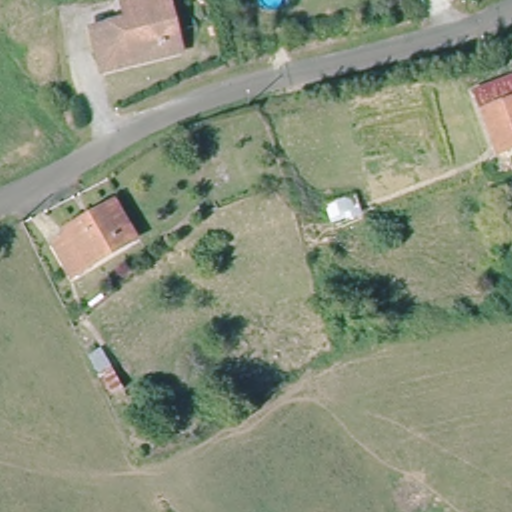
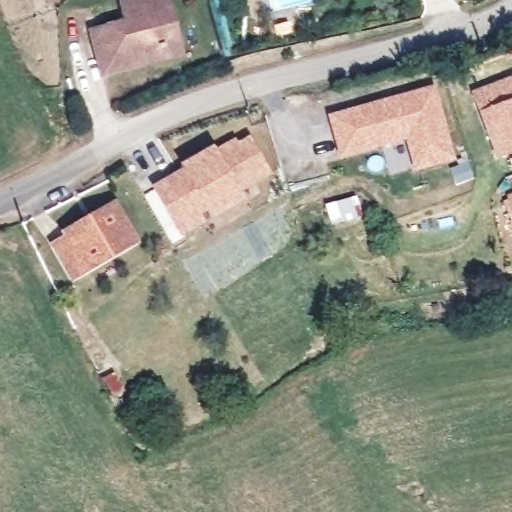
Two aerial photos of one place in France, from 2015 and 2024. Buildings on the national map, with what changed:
unchanged [(137,64),(136,60),(104,66),(95,23),(127,15),(124,0),(170,0),(172,7),(181,53),(137,64)]
unchanged [(500,152),(475,94),(512,79),(512,147),(500,152)]
new [(431,87),(450,155),(414,164),(410,147),(406,132),(380,140),(341,150),(332,113),(431,87)]
new [(184,160),(182,155),(207,141),(210,145),(229,134),(232,138),(244,132),(263,166),(232,184),(237,192),(211,207),(205,196),(191,204),(197,215),(180,225),(153,177),(184,160)]
new [(507,195),(512,193),(512,206),(507,195)]
unchanged [(59,242),(69,236),(65,228),(114,201),(137,246),(75,279),(59,242)]

